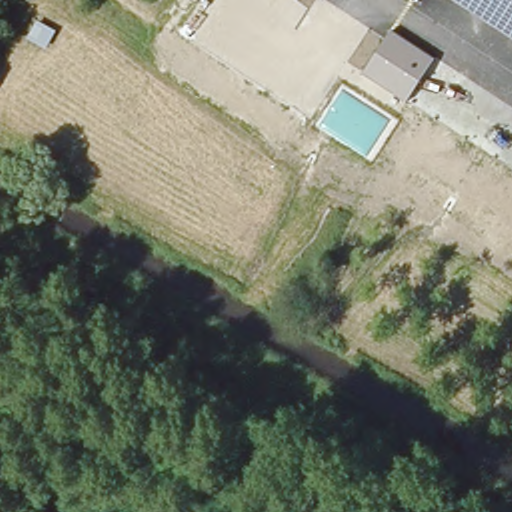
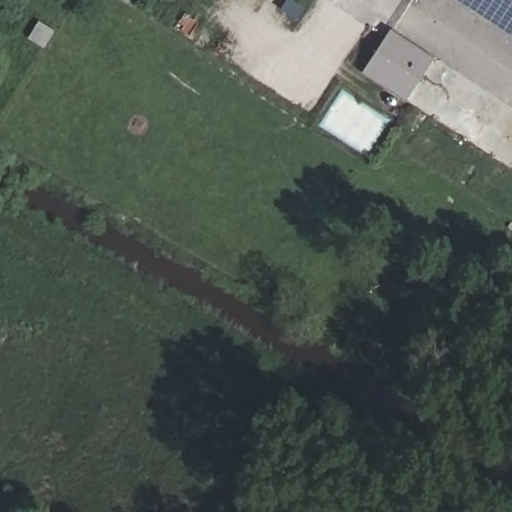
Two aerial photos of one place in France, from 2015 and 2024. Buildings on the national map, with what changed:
unchanged [(512,0),(512,38),(454,0),(512,0)]
unchanged [(36,21),(54,32),(44,47),(41,46),(34,56),(20,47),(36,21)]
unchanged [(407,102),(361,73),(390,30),(435,58),(407,102)]

